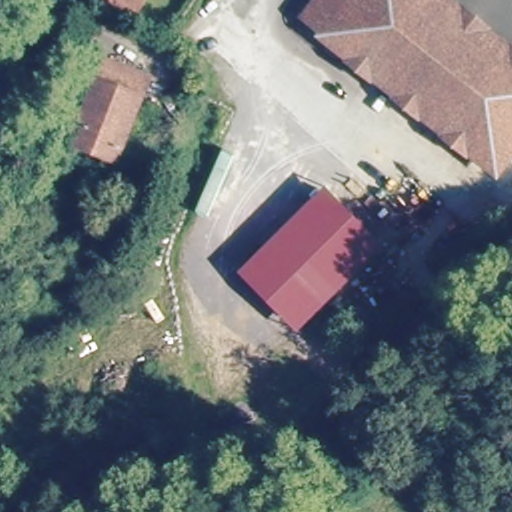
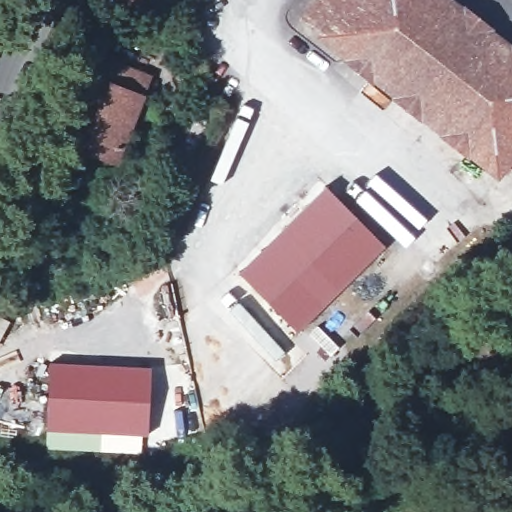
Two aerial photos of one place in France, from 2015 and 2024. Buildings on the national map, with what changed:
unchanged [(120,0),(141,0),(137,8),(120,0)]
unchanged [(321,0),(444,0),(512,52),(512,153),(497,172),(304,21),(321,0)]
unchanged [(90,154),(70,145),(109,61),(152,81),(120,150),(112,165),(90,154)]
unchanged [(386,247),(296,333),(237,272),(324,185),(386,247)]
new [(151,367),(149,435),(47,431),(49,362),(151,367)]

